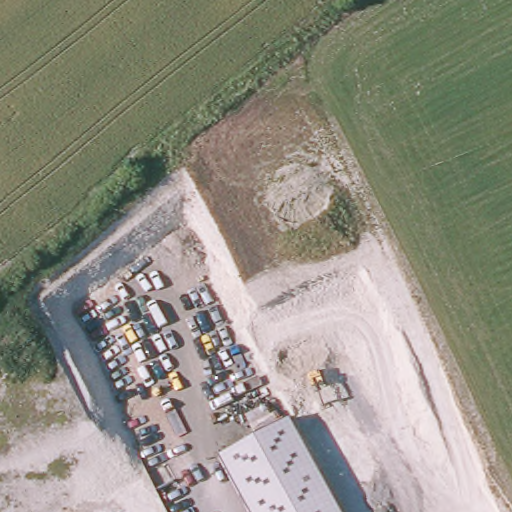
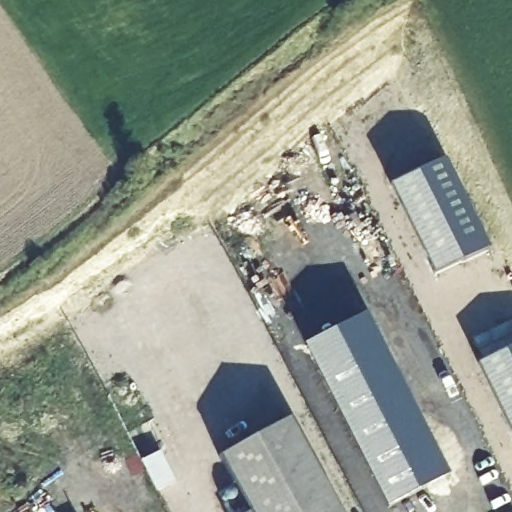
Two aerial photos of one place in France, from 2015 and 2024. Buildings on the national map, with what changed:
new [(390,185),(447,157),(491,247),(433,275),(390,185)]
new [(304,346),(367,314),(449,476),(387,508),(304,346)]
new [(512,347),(512,437),(477,365),(512,347)]
unchanged [(251,512),(220,456),(290,418),(342,512),(251,512)]

